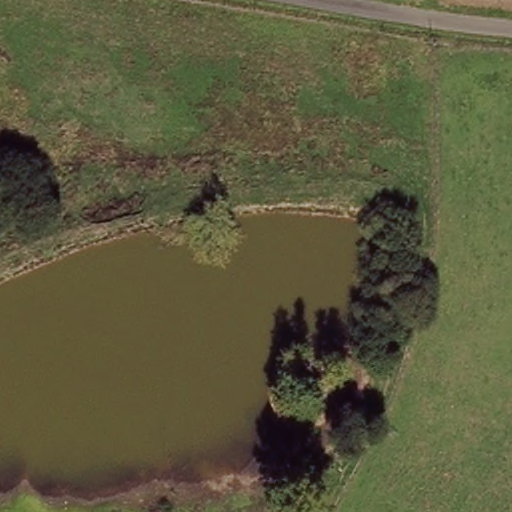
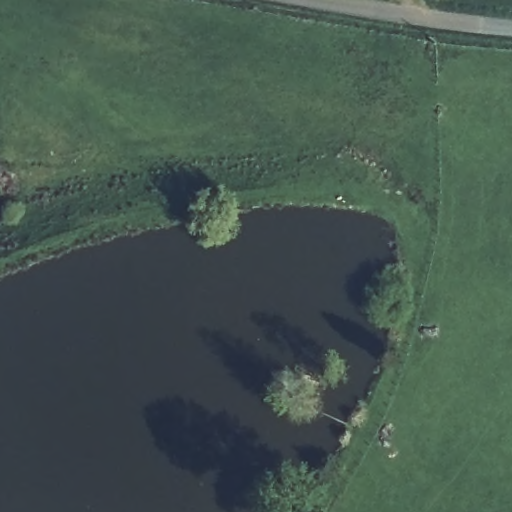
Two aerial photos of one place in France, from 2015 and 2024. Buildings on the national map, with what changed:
[]

